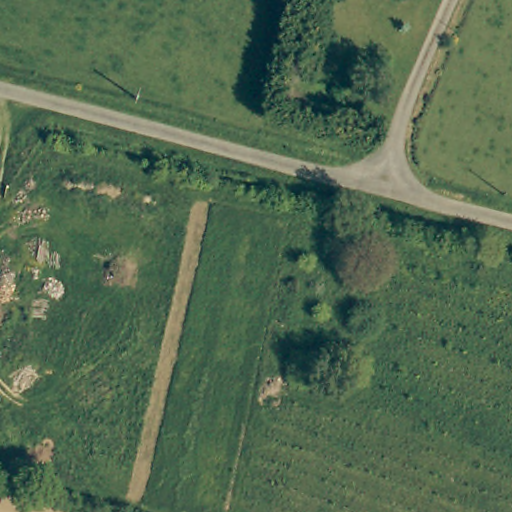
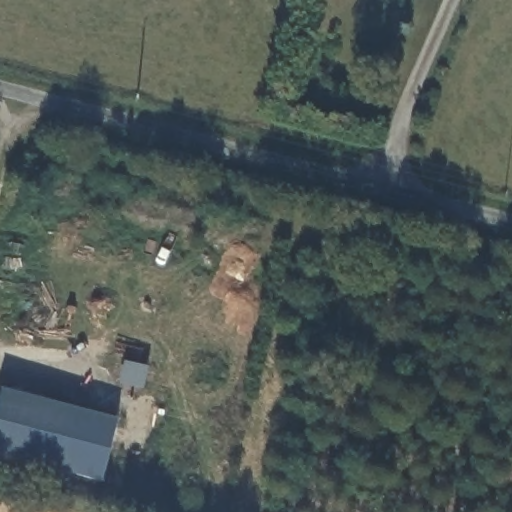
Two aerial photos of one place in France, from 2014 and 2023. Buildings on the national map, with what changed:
new [(149,367),(143,390),(117,384),(124,361),(149,367)]
new [(117,421),(101,482),(0,455),(0,398),(2,389),(117,421)]

